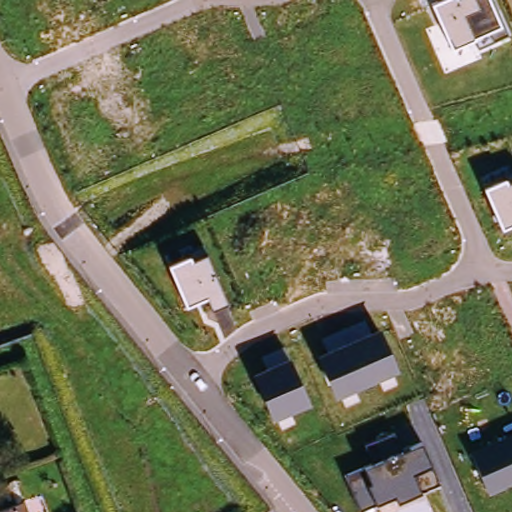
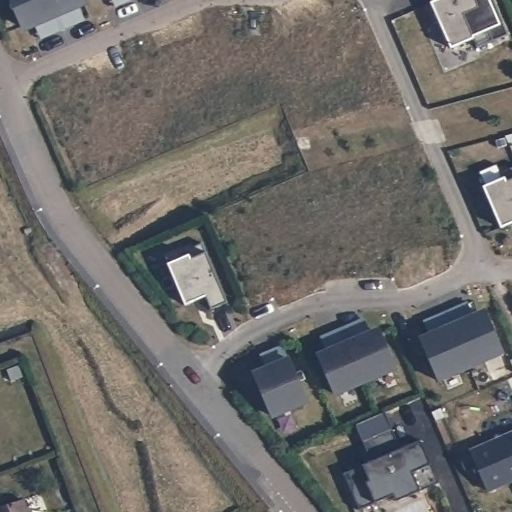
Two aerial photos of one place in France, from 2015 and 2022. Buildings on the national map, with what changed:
new [(31,21),(22,0),(57,0),(82,0),(88,16),(82,19),(68,25),(54,31),(47,34),(40,18),(31,21)]
new [(115,0),(123,0),(126,0),(123,1),(117,4),(115,0)]
unchanged [(488,0),(498,25),(505,36),(477,47),(474,39),(452,47),(430,2),(436,0),(488,0)]
unchanged [(505,181),(512,179),(512,224),(500,229),(482,186),(504,176),(505,181)]
unchanged [(225,301),(210,307),(206,295),(184,303),(167,263),(190,255),(192,260),(205,255),(225,301)]
new [(440,383),(419,336),(429,332),(423,321),(467,302),(473,313),(485,308),(504,354),(440,383)]
unchanged [(398,368),(335,396),(317,355),(378,327),(398,368)]
unchanged [(265,366),(260,352),(283,344),(308,405),(272,418),(252,371),(265,366)]
unchanged [(367,462),(361,443),(395,430),(404,449),(421,442),(430,465),(438,482),(421,490),(395,500),(392,495),(375,501),(359,508),(343,472),(367,462)]
unchanged [(512,482),(488,492),(471,451),(512,434),(512,482)]
unchanged [(27,497),(31,512),(0,512),(0,507),(27,497)]

